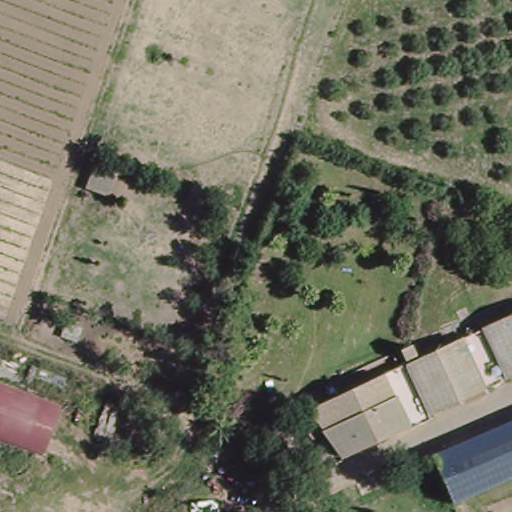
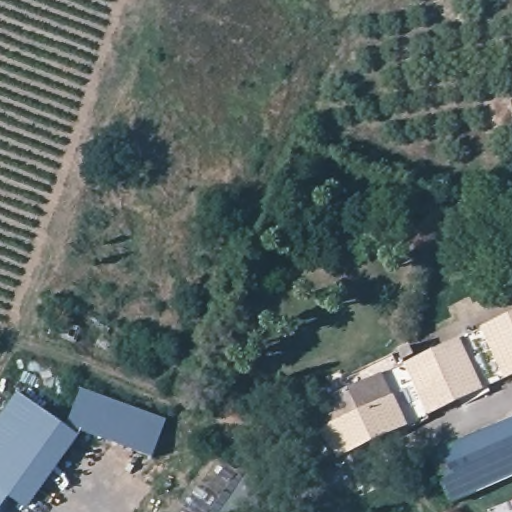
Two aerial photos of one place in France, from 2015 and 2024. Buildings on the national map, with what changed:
unchanged [(512,314),(512,375),(338,458),(307,409),(512,314)]
new [(81,389),(165,419),(151,458),(81,433),(26,509),(0,491),(0,418),(18,392),(67,426),(81,389)]
unchanged [(454,499),(437,462),(454,443),(512,417),(512,474),(454,499)]
new [(0,492),(8,497),(0,509),(0,492)]

